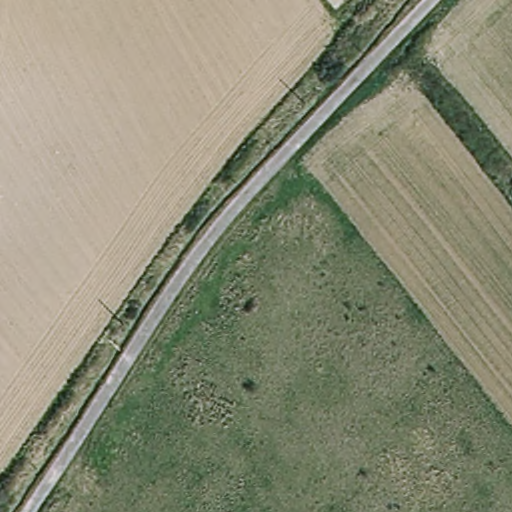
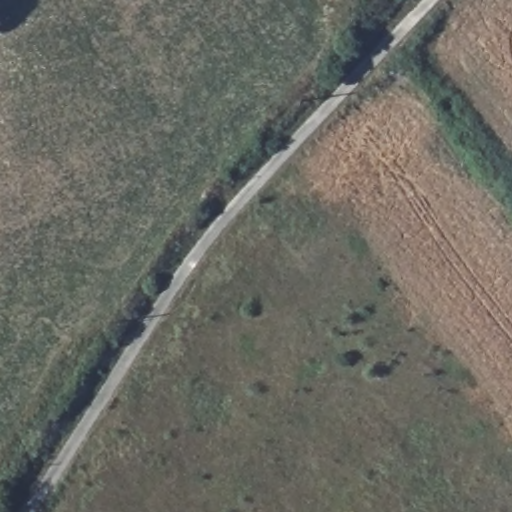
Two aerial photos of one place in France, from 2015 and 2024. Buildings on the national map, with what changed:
[]

